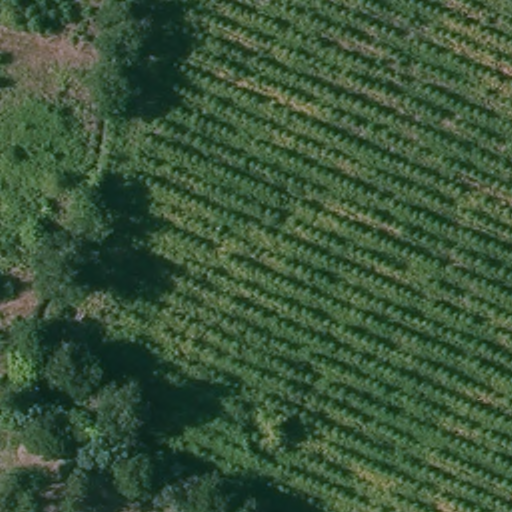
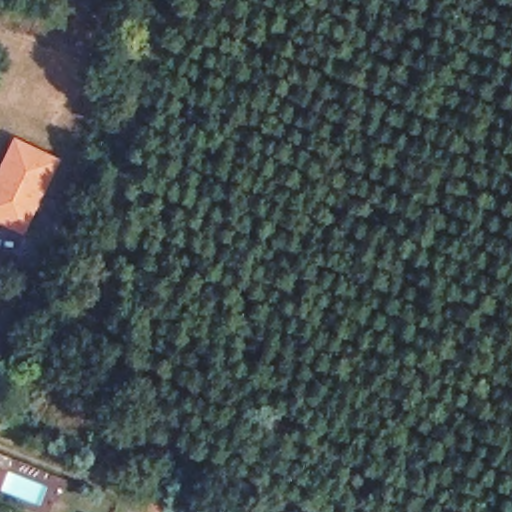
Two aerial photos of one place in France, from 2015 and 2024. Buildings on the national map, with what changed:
new [(61,160),(25,235),(0,224),(0,167),(15,137),(61,160)]

